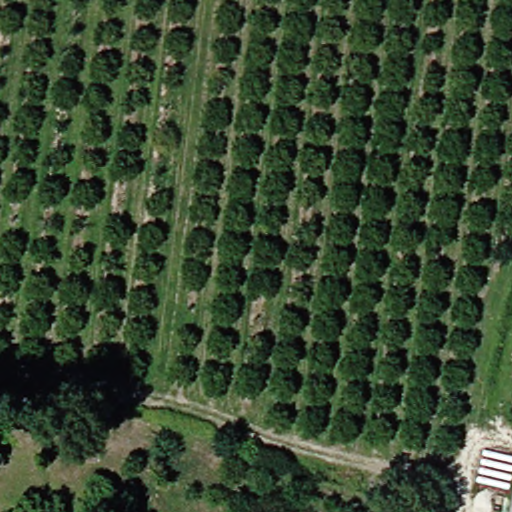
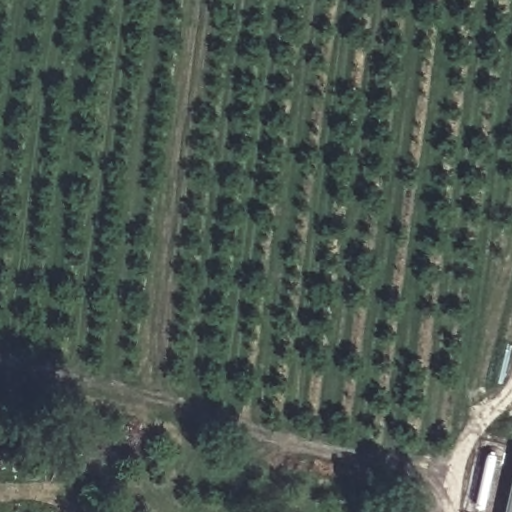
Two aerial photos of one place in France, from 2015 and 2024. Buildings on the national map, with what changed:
unchanged [(512,512),(507,512),(512,491),(512,512)]

